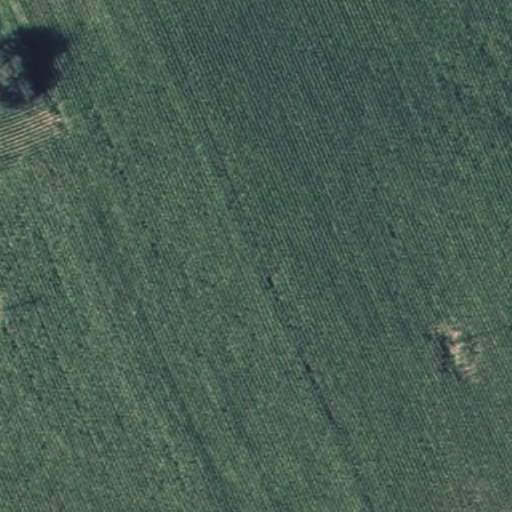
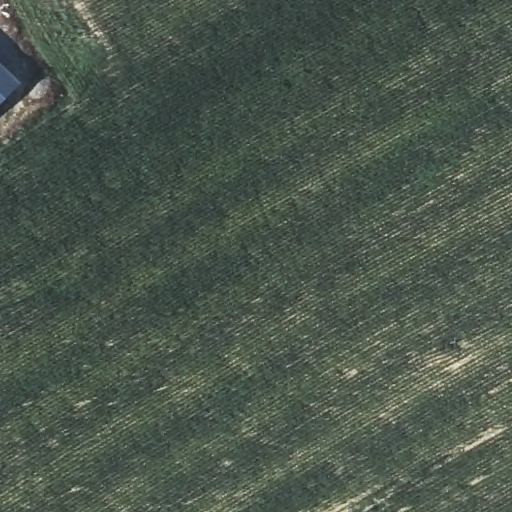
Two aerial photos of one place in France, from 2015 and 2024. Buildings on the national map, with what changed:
new [(19,85),(0,103),(0,67),(19,85)]

